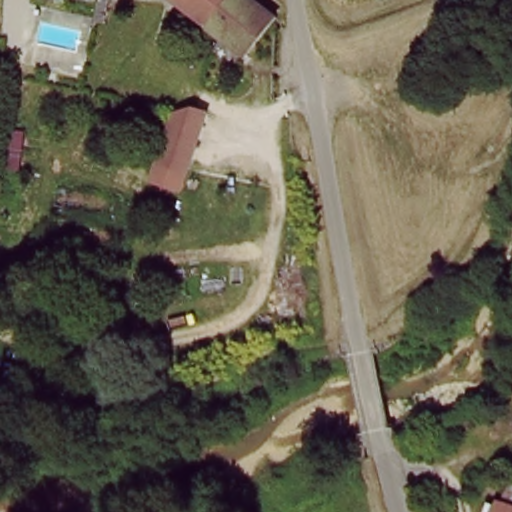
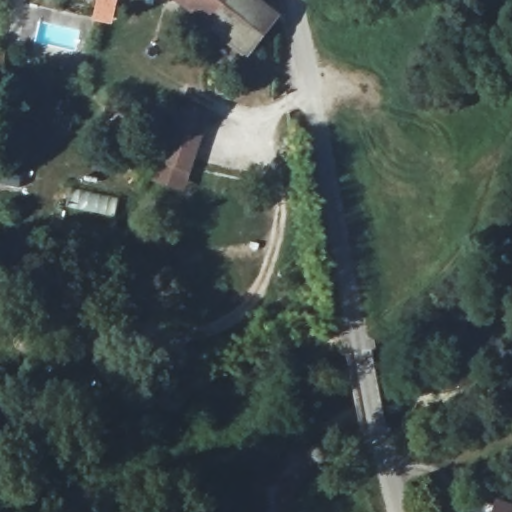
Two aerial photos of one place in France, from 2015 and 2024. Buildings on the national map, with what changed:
unchanged [(93,24),(95,4),(73,0),(108,0),(106,24),(93,24)]
unchanged [(172,0),(230,0),(209,27),(172,0)]
unchanged [(250,58),(209,27),(230,0),(261,0),(282,15),(250,58)]
unchanged [(186,174),(156,165),(159,158),(175,109),(176,108),(195,105),(205,115),(186,174)]
unchanged [(512,490),(512,512),(491,512),(500,485),(512,490)]

